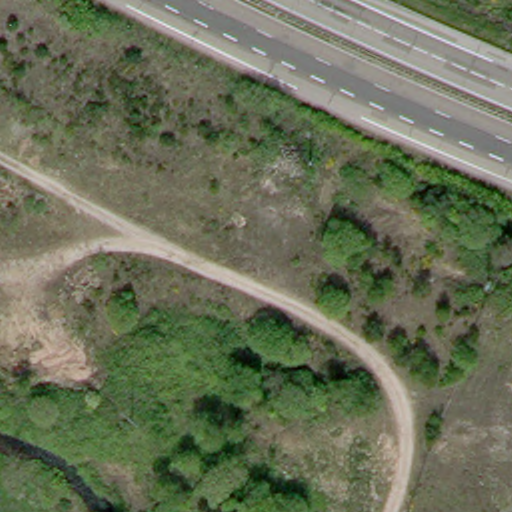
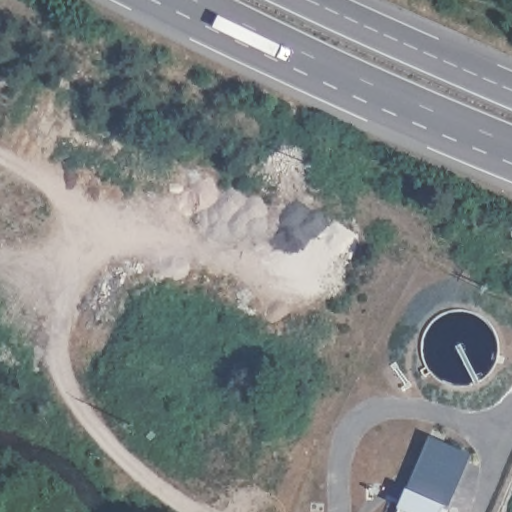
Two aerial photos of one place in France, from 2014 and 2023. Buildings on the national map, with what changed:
new [(473,452),(451,504),(446,503),(442,512),(411,512),(400,507),(409,485),(430,434),(473,452)]

